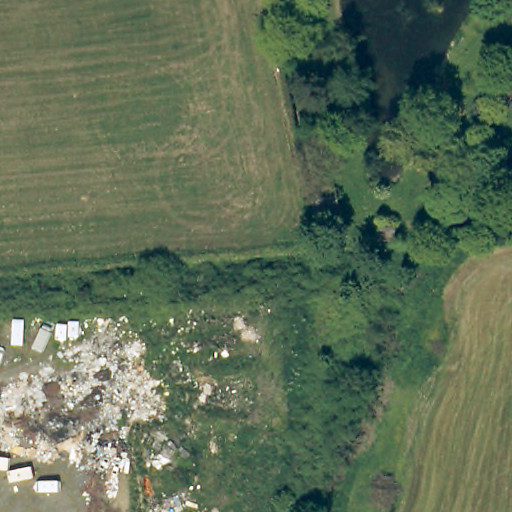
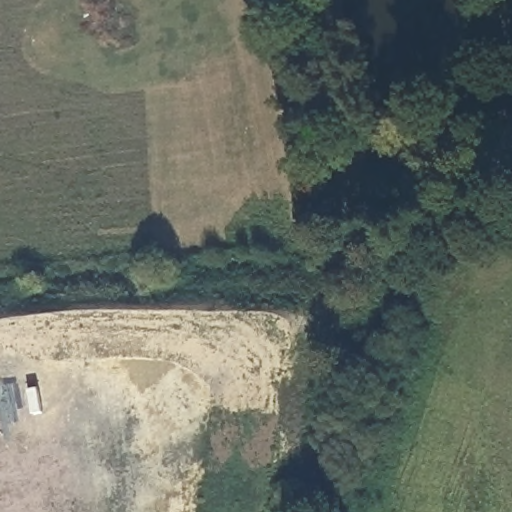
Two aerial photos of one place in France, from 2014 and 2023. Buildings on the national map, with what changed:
unchanged [(396,222),(398,237),(382,239),(380,224),(396,222)]

